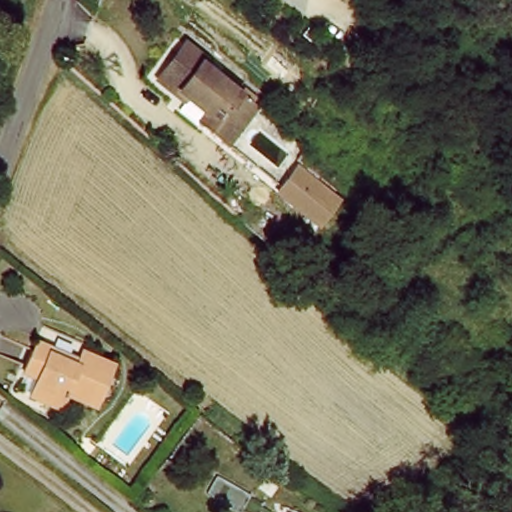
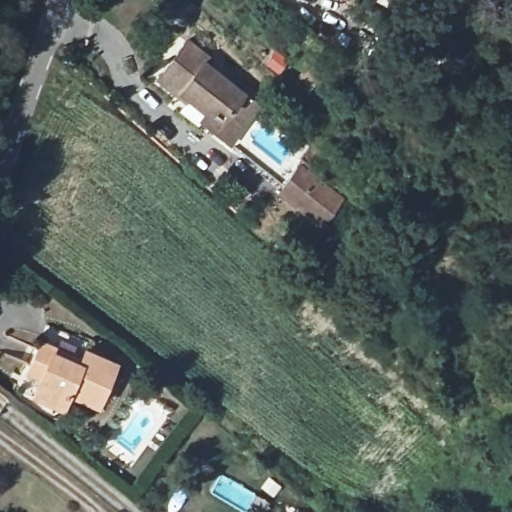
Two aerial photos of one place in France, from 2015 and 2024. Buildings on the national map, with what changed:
unchanged [(333,2),(323,0),(334,0),(333,2)]
unchanged [(165,74),(192,40),(212,56),(208,61),(263,105),(234,141),(206,119),(212,111),(165,74)]
unchanged [(344,204),(340,209),(325,228),(284,195),(304,171),(344,204)]
unchanged [(36,410),(30,399),(32,396),(38,380),(23,373),(41,333),(59,341),(88,352),(91,345),(119,360),(97,407),(70,395),(62,411),(58,420),(36,410)]

